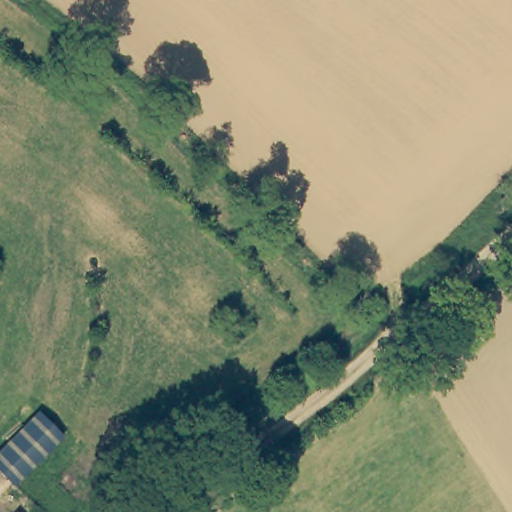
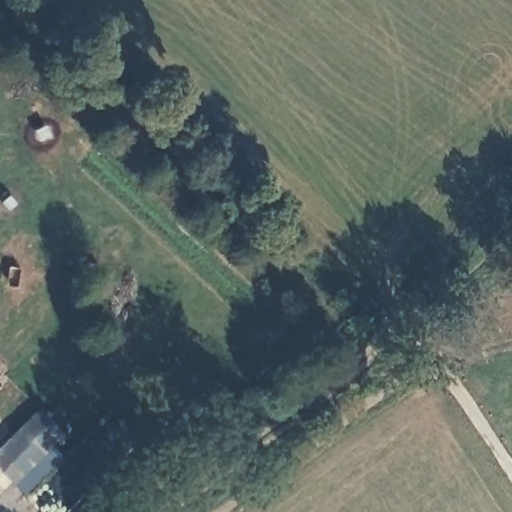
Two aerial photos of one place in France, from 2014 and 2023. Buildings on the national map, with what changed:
unchanged [(63,435),(13,483),(0,469),(0,451),(41,411),(63,435)]

